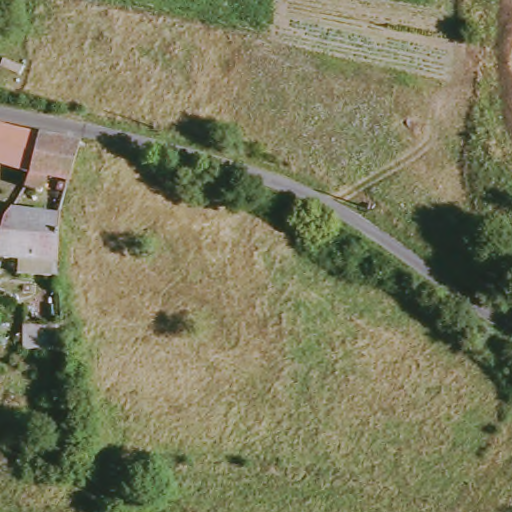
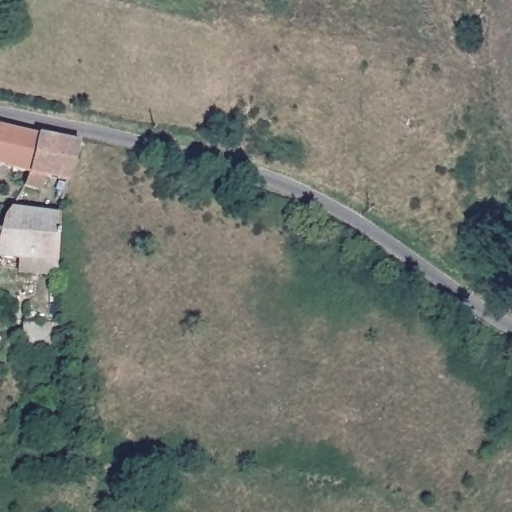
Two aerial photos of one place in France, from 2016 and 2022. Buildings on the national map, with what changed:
unchanged [(38,135),(27,170),(0,163),(0,129),(38,135)]
unchanged [(64,181),(42,175),(35,192),(20,185),(27,170),(38,135),(79,141),(64,181)]
unchanged [(22,255),(0,253),(0,222),(6,205),(55,209),(54,256),(54,275),(20,274),(22,255)]

